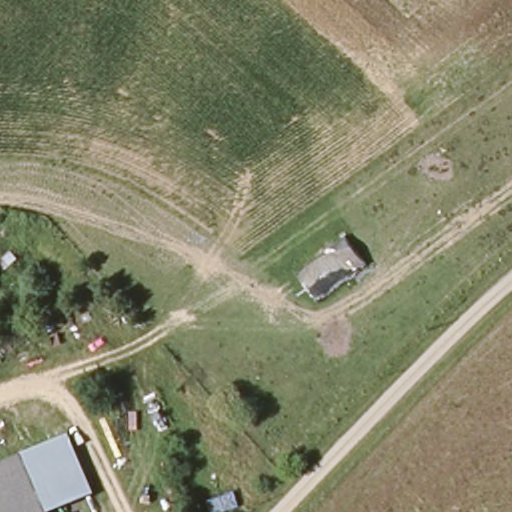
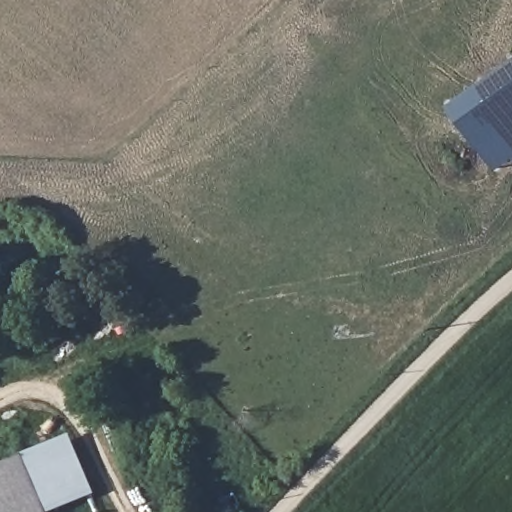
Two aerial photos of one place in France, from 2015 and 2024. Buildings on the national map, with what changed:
new [(449,103),(512,57),(512,157),(496,168),(449,103)]
unchanged [(69,434),(92,487),(46,508),(23,454),(69,434)]
unchanged [(0,462),(22,453),(23,454),(46,508),(48,512),(0,512),(0,462)]

